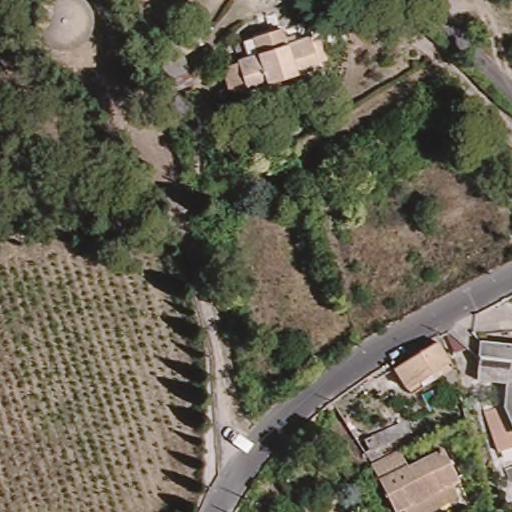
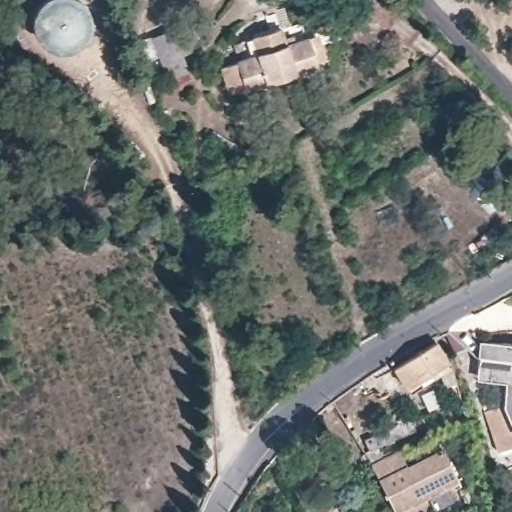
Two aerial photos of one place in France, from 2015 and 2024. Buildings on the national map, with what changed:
unchanged [(257,56),(256,55),(250,38),(280,29),(285,45),(287,46),(307,40),(317,36),(325,63),(315,66),(295,73),(295,75),(265,85),(264,83),(242,91),(237,77),(232,78),(230,73),(224,75),(222,69),(257,56)]
unchanged [(164,82),(150,46),(148,40),(170,31),(172,37),(172,39),(188,30),(190,33),(196,50),(180,57),(186,73),(164,82)]
unchanged [(505,451),(488,413),(508,403),(508,377),(485,376),(484,369),(485,348),(485,338),(508,339),(512,340),(512,447),(505,451)]
unchanged [(407,391),(395,370),(435,344),(448,364),(407,391)]
unchanged [(452,393),(447,375),(453,373),(459,391),(452,393)]
unchanged [(457,481),(470,508),(462,512),(411,512),(407,506),(400,509),(383,474),(375,461),(387,455),(377,459),(370,446),(375,444),(372,434),(418,416),(422,428),(385,444),(389,454),(405,448),(411,460),(412,462),(447,444),(464,478),(457,481)]

